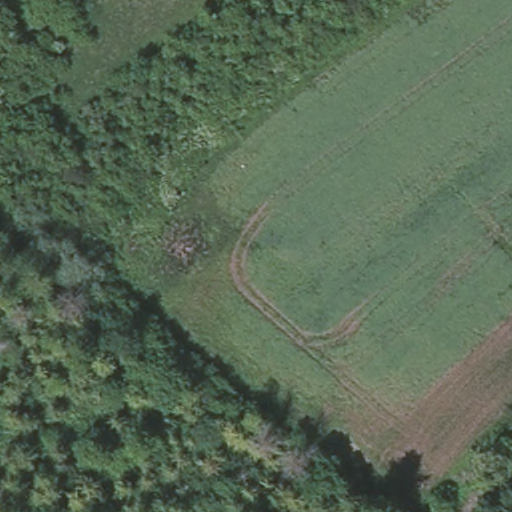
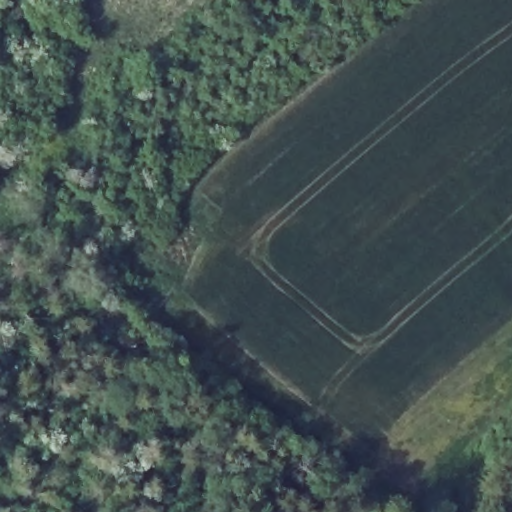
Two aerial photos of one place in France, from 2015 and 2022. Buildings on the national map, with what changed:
[]

